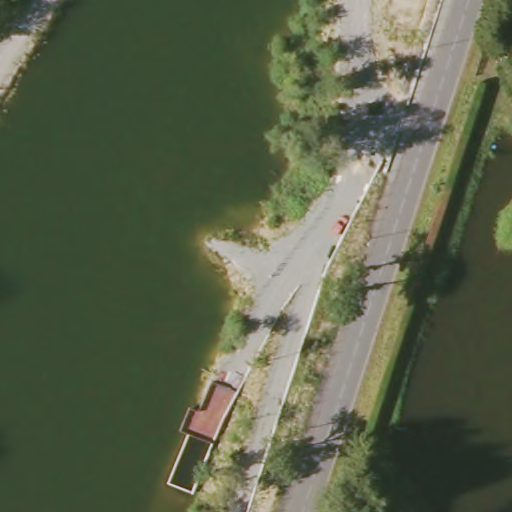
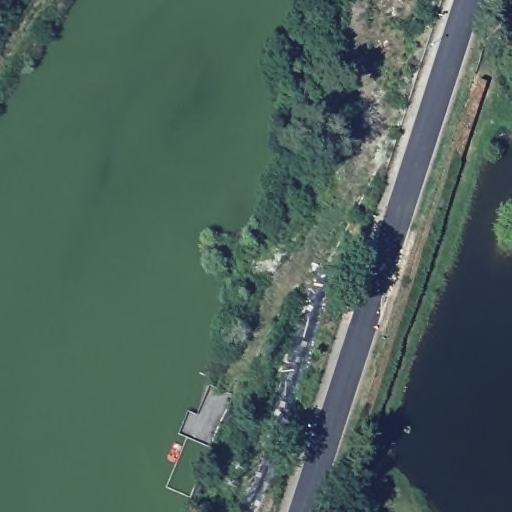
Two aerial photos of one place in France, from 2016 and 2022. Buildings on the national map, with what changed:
unchanged [(387,0),(444,0),(430,42),(390,28),(392,25),(381,20),(387,0)]
unchanged [(305,374),(307,367),(315,344),(327,348),(318,378),(305,374)]

